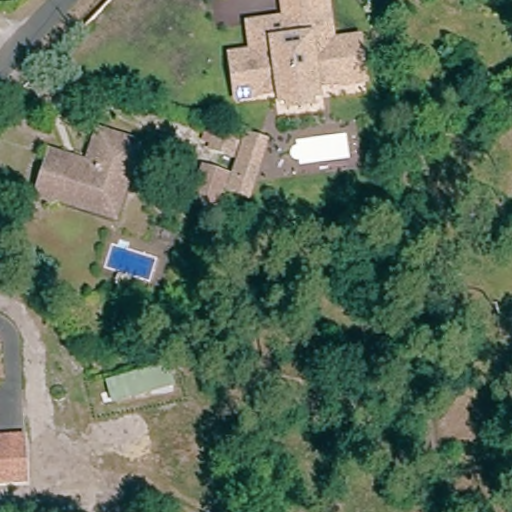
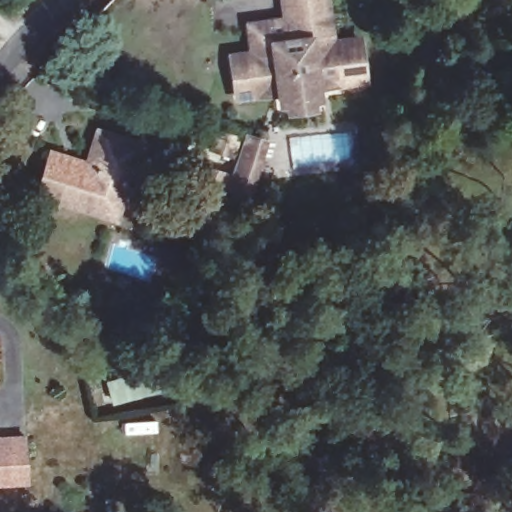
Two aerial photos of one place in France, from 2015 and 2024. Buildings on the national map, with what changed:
unchanged [(284,112),(284,104),(277,105),(276,94),(233,101),(228,58),(250,55),(248,37),(247,25),(264,22),(284,19),(282,0),(326,0),(330,42),(358,37),(360,59),(362,80),(335,84),(314,87),(315,99),(309,100),(310,107),(284,112)]
unchanged [(53,202),(47,206),(33,200),(49,151),(87,162),(98,130),(139,143),(117,206),(112,220),(53,202)]
unchanged [(249,192),(242,191),(227,186),(230,177),(237,156),(211,147),(217,130),(242,139),(245,132),(259,136),(266,137),(249,192)]
unchanged [(212,215),(202,212),(204,205),(191,200),(203,165),(226,172),(212,215)]
unchanged [(29,482),(0,484),(0,437),(27,436),(29,482)]

